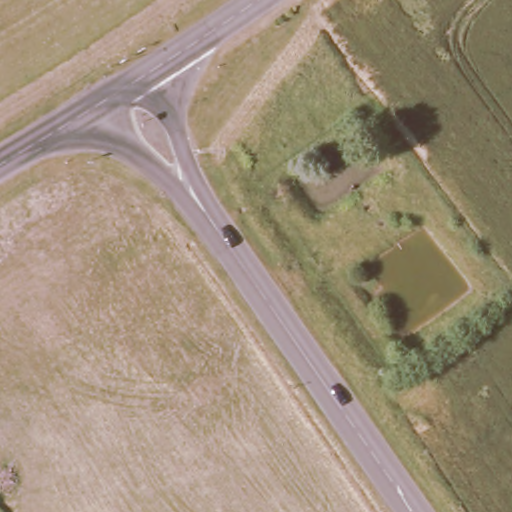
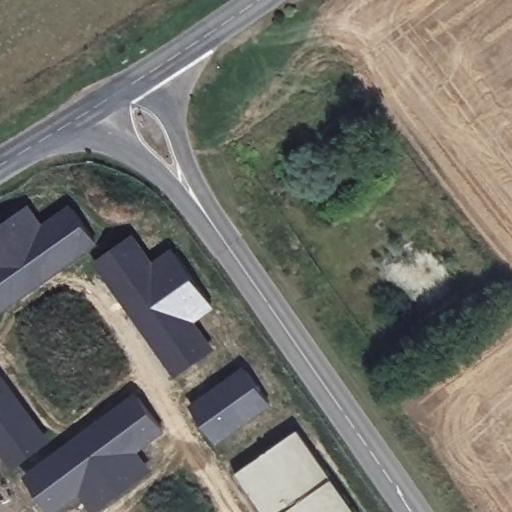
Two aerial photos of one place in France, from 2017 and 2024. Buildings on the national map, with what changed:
new [(45,223),(72,204),(100,244),(0,315),(0,226),(32,204),(45,223)]
new [(98,260),(135,234),(154,260),(173,248),(216,308),(197,321),(215,348),(180,373),(177,369),(173,372),(142,328),(138,331),(94,269),(99,266),(98,260)]
new [(219,445),(190,405),(245,366),(274,406),(219,445)]
new [(0,369),(52,439),(12,469),(0,452),(0,369)]
new [(58,512),(53,512),(25,475),(137,392),(167,431),(140,451),(154,469),(96,512),(94,512),(80,496),(58,512)]
new [(237,474),(299,430),(356,512),(264,512),(237,474)]

